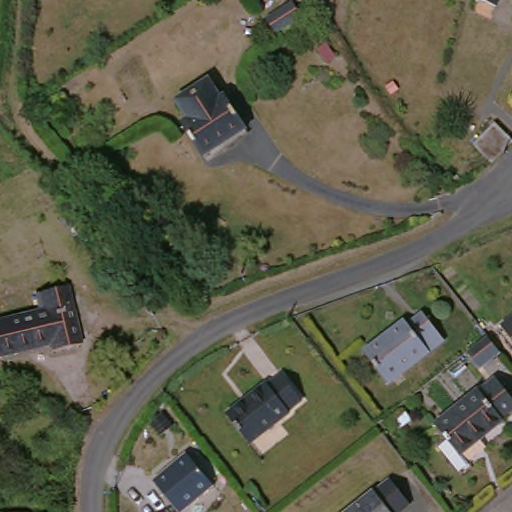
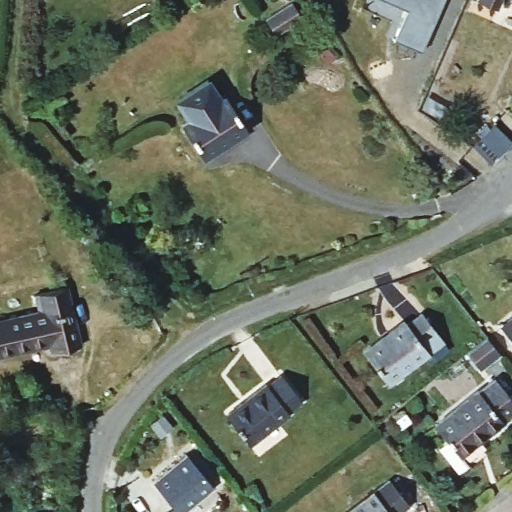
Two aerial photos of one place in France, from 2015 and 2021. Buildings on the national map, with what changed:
new [(421,53),(394,41),(407,11),(385,0),(445,0),(421,53)]
unchanged [(500,3),(494,19),(471,9),(475,0),(501,0),(500,3)]
unchanged [(501,0),(512,0),(512,9),(500,3),(501,0)]
unchanged [(262,25),(289,7),(299,22),(273,40),(262,25)]
unchanged [(512,9),(512,25),(506,22),(512,9)]
unchanged [(181,128),(188,124),(177,105),(210,85),(221,104),(226,102),(244,132),(200,159),(181,128)]
unchanged [(512,157),(512,158),(489,180),(472,161),(496,139),(512,157)]
unchanged [(48,349),(24,353),(0,358),(0,327),(35,319),(30,304),(61,297),(76,344),(79,351),(51,357),(48,349)]
unchanged [(356,355),(396,325),(399,330),(414,320),(434,347),(380,387),(356,355)]
unchanged [(512,352),(498,334),(512,323),(512,352)]
unchanged [(282,418),(284,421),(246,450),(222,420),(261,390),(263,393),(277,382),(296,407),(282,418)]
unchanged [(438,445),(448,439),(436,424),(477,394),(478,394),(495,382),(512,403),(512,412),(502,419),(503,421),(459,454),(467,464),(457,472),(438,445)]
unchanged [(179,512),(154,483),(187,456),(212,487),(182,512),(179,512)]
unchanged [(406,512),(346,512),(384,483),(407,511),(406,512)]

